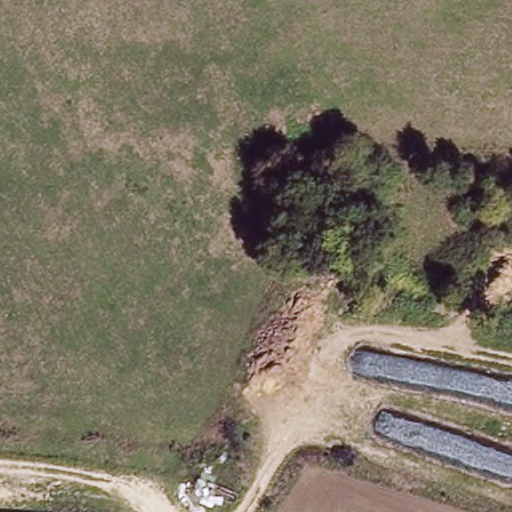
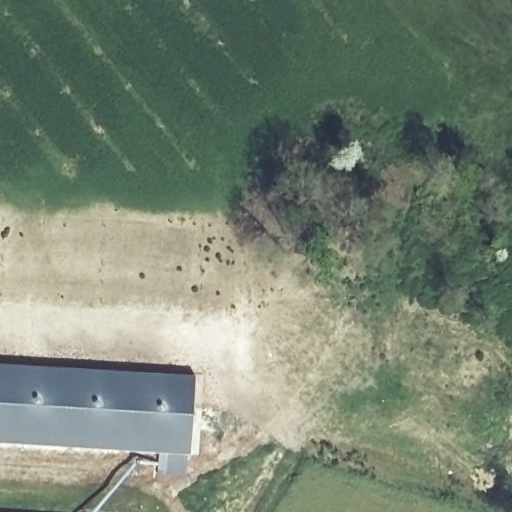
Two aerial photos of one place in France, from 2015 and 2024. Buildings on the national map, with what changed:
new [(194,375),(190,455),(188,455),(186,476),(157,475),(158,454),(0,443),(0,363),(194,375)]

